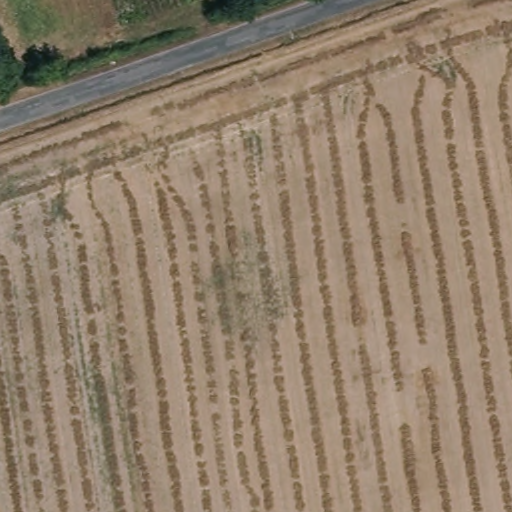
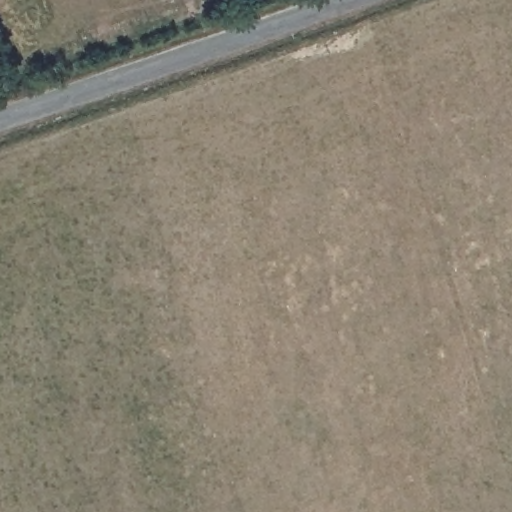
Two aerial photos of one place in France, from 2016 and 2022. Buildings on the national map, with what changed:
unchanged [(7,36),(16,59),(0,66),(0,39),(7,36)]

